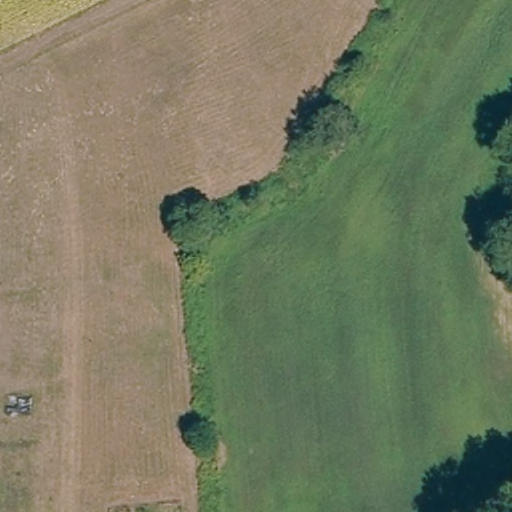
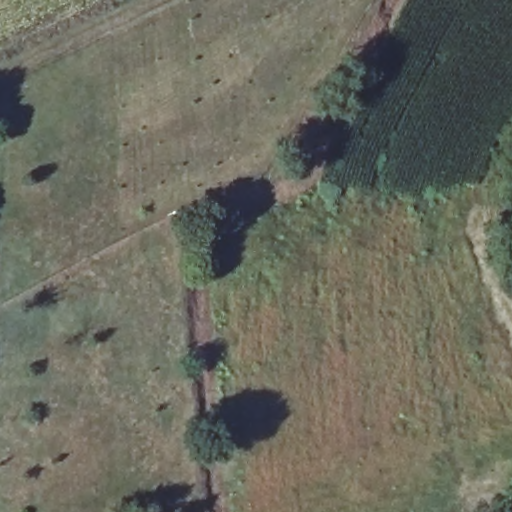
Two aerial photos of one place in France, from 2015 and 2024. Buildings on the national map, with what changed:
[]

